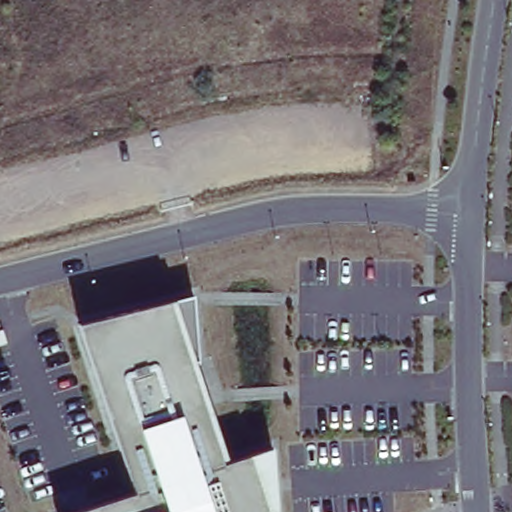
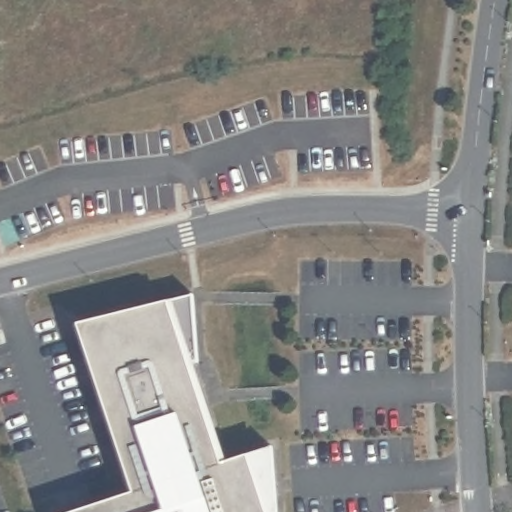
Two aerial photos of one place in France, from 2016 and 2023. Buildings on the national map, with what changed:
unchanged [(197,356),(231,465),(275,447),(279,512),(81,512),(135,491),(79,322),(188,295),(197,356)]

